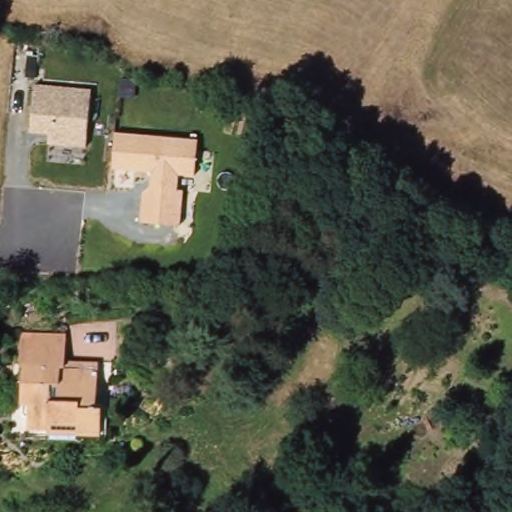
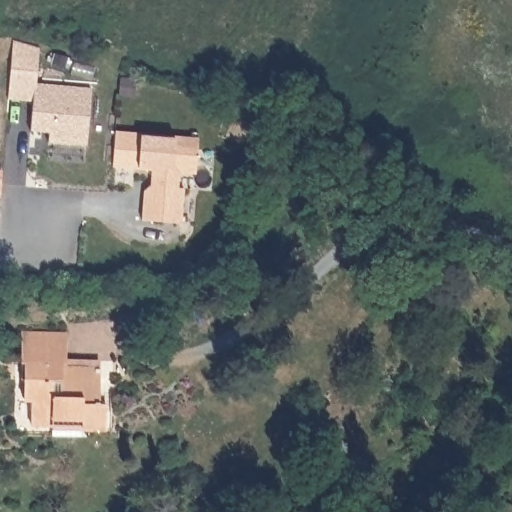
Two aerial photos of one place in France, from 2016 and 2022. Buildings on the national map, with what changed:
new [(33,84),(32,102),(8,100),(13,41),(38,48),(37,85),(33,84)]
unchanged [(91,89),(85,149),(49,147),(49,133),(30,132),(33,84),(91,89)]
unchanged [(198,140),(194,178),(178,178),(178,189),(182,191),(181,229),(139,227),(140,194),(148,194),(149,175),(110,172),(113,131),(198,140)]
unchanged [(99,392),(105,392),(106,421),(115,420),(115,426),(18,431),(17,424),(32,423),(31,398),(24,398),(23,383),(26,380),(25,361),(18,360),(18,336),(60,334),(61,359),(75,360),(97,359),(99,392)]

